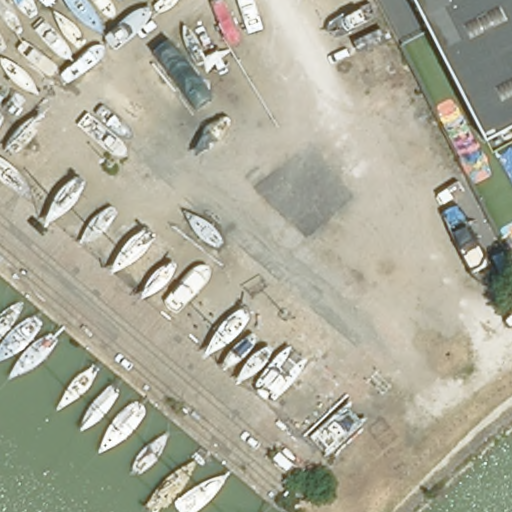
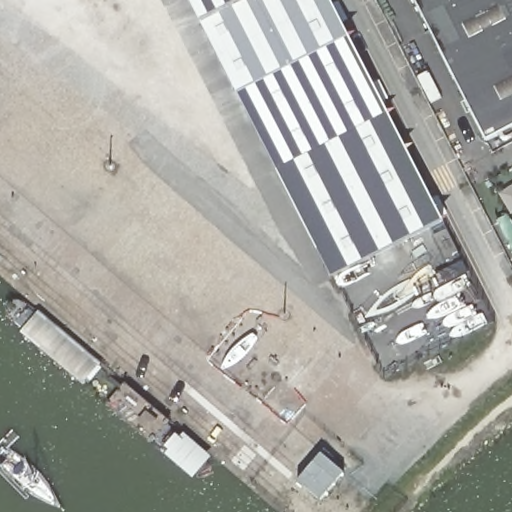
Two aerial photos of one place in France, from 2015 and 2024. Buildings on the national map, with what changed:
new [(443,221),(331,277),(191,0),(331,0),(443,221)]
unchanged [(485,139),(415,0),(512,0),(512,125),(485,139)]
demolished [(439,164),(407,180),(363,91),(395,74),(439,164)]
new [(317,500),(292,477),(318,450),(341,473),(317,500)]

